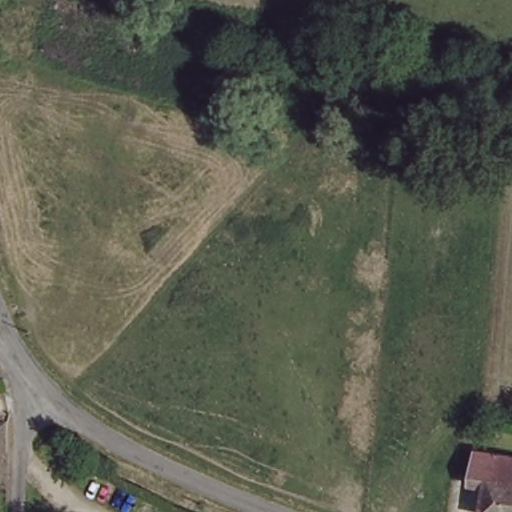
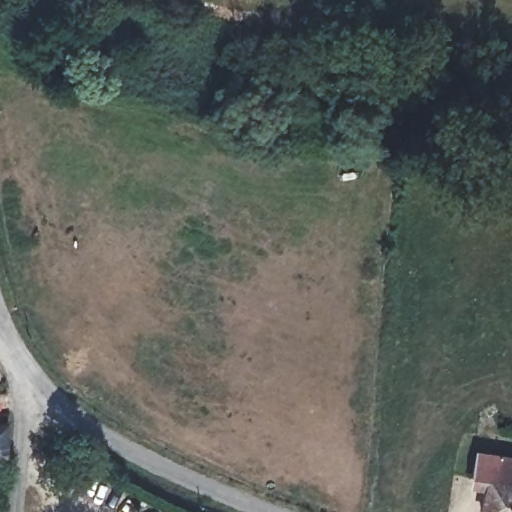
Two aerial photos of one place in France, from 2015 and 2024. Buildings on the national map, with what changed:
unchanged [(8,458),(0,458),(0,425),(7,425),(8,458)]
unchanged [(479,512),(484,482),(470,479),(476,451),(512,458),(512,512),(479,512)]

